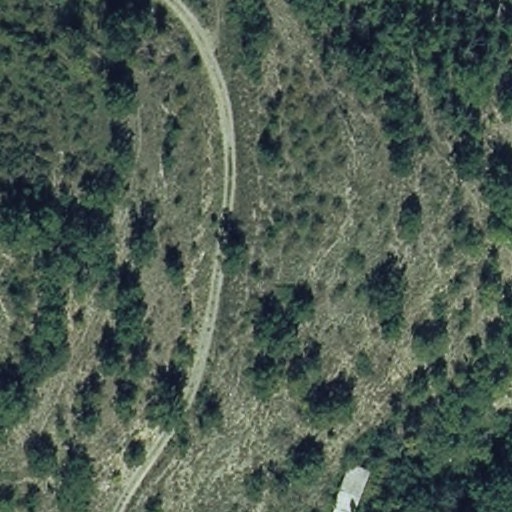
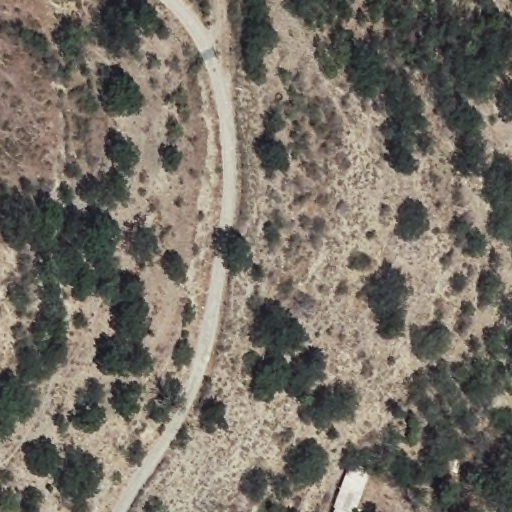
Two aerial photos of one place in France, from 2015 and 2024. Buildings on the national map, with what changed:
unchanged [(347,462),(372,469),(359,512),(333,512),(347,462)]

